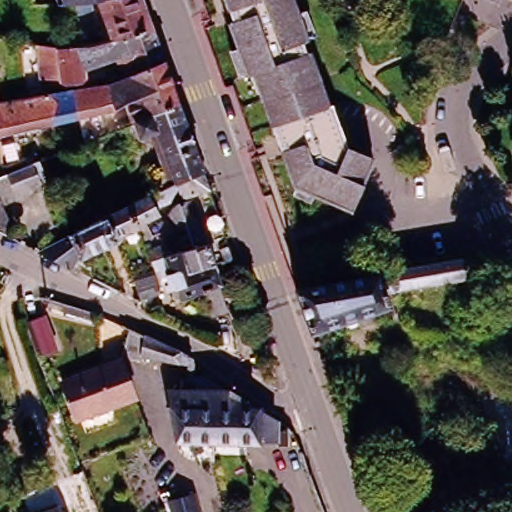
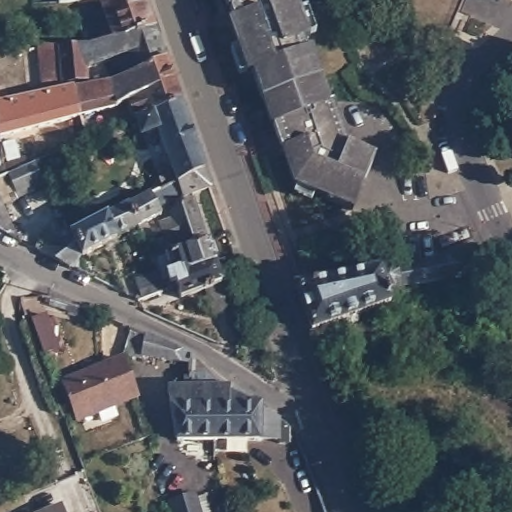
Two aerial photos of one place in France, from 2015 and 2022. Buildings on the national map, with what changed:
unchanged [(56,0),(81,0),(56,3),(56,0)]
unchanged [(140,29),(127,33),(116,0),(145,0),(153,25),(140,29)]
unchanged [(300,34),(304,45),(307,44),(325,97),(328,96),(344,139),(373,151),(355,196),(325,185),(323,189),(321,192),(289,178),(268,119),(275,115),(257,62),(246,66),(228,16),(232,14),(228,1),(232,0),(294,0),(305,32),(300,34)]
unchanged [(135,55),(134,51),(98,61),(95,48),(87,49),(91,78),(75,81),(40,85),(37,42),(53,43),(62,44),(70,44),(85,43),(98,40),(127,33),(140,29),(153,25),(165,56),(161,57),(128,73),(124,59),(135,55)]
unchanged [(90,84),(111,80),(128,73),(161,57),(165,56),(180,98),(133,118),(127,101),(107,106),(78,111),(70,87),(90,84)]
unchanged [(37,93),(55,89),(70,87),(78,111),(0,124),(0,99),(37,93)]
unchanged [(157,127),(141,133),(137,124),(130,127),(128,120),(133,118),(180,98),(188,122),(204,166),(176,180),(157,127)]
unchanged [(1,139),(0,140),(0,136),(1,139)]
unchanged [(2,174),(2,162),(36,151),(39,158),(47,180),(22,190),(23,194),(2,203),(11,224),(8,233),(0,228),(0,175),(2,174)]
unchanged [(204,166),(210,183),(184,196),(183,194),(157,206),(161,215),(145,222),(151,236),(142,240),(137,226),(129,203),(176,180),(204,166)]
unchanged [(175,284),(170,282),(166,270),(155,274),(160,290),(142,297),(133,272),(151,266),(150,261),(145,250),(170,242),(168,238),(165,236),(160,222),(173,217),(171,213),(176,203),(194,196),(207,239),(227,231),(236,255),(224,259),(215,262),(220,280),(227,303),(214,308),(206,285),(178,294),(175,284)]
unchanged [(129,203),(137,226),(114,234),(115,238),(82,252),(75,267),(37,248),(53,240),(129,203)]
unchanged [(352,325),(345,328),(342,326),(341,321),(307,331),(297,302),(292,289),(345,278),(385,271),(410,267),(436,263),(462,259),(471,277),(402,288),(381,292),(385,306),(352,317),(354,323),(352,325)]
unchanged [(46,314),(60,352),(42,357),(27,320),(46,314)]
unchanged [(153,335),(195,355),(197,358),(192,360),(122,348),(129,324),(153,335)]
unchanged [(61,379),(121,356),(135,395),(75,418),(61,379)]
unchanged [(192,386),(191,370),(205,371),(209,374),(270,409),(276,413),(284,417),(283,441),(275,440),(258,439),(177,437),(167,386),(192,386)]
unchanged [(197,512),(170,512),(165,498),(190,490),(197,512)]
unchanged [(57,501),(62,512),(32,512),(57,501)]

